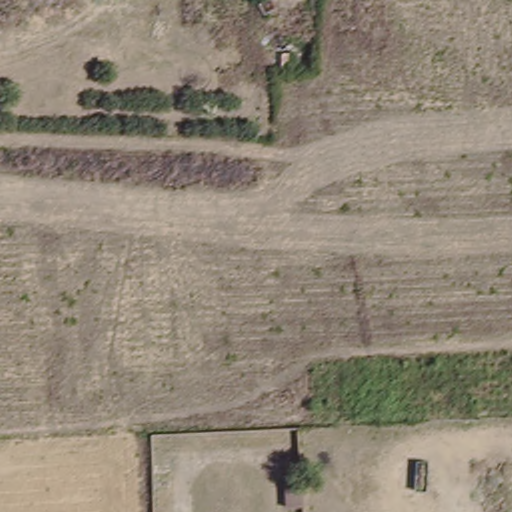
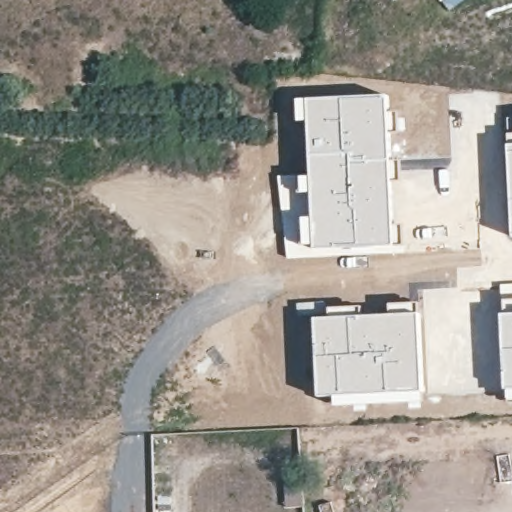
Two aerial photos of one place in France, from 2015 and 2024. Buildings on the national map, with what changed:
new [(389,94),(392,122),(394,193),(399,247),(315,255),(310,175),(308,122),(297,123),(296,99),(389,94)]
new [(512,240),(506,117),(512,116),(512,240)]
new [(502,285),(512,285),(512,402),(509,403),(508,390),(506,391),(502,315),(504,301),(502,285)]
new [(331,319),(330,309),(363,306),(364,316),(391,315),(390,304),(419,303),(420,314),(425,403),(337,408),(335,397),(319,398),(316,320),(331,319)]
unchanged [(304,508),(286,509),(285,485),(302,483),(304,508)]

